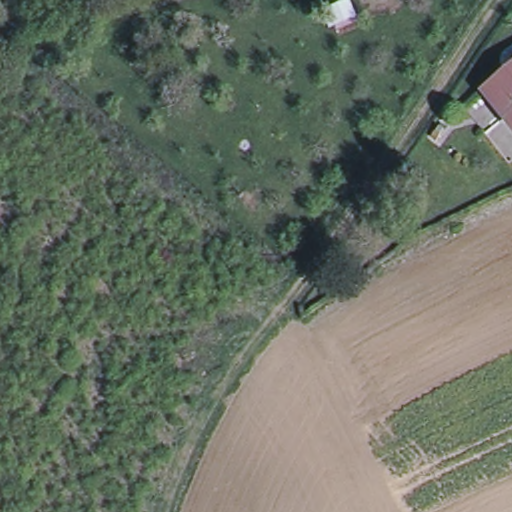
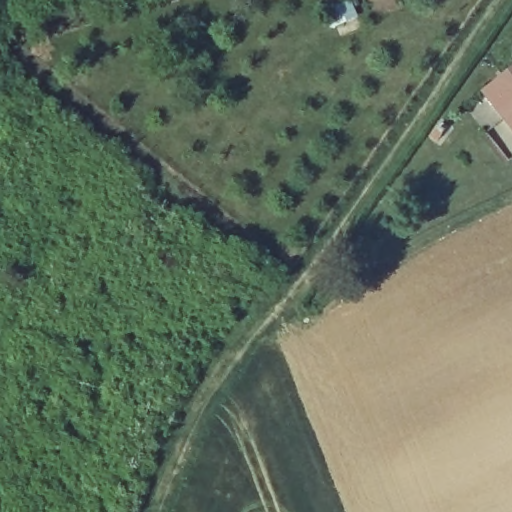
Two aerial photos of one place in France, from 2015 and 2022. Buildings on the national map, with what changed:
unchanged [(465,102),(486,85),(504,70),(509,76),(512,73),(512,118),(507,111),(486,128),(465,102)]

